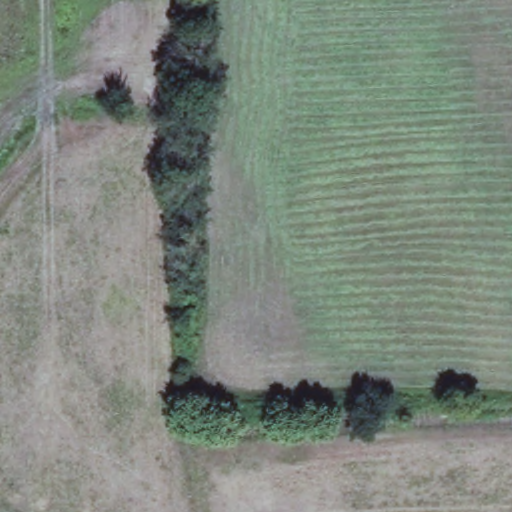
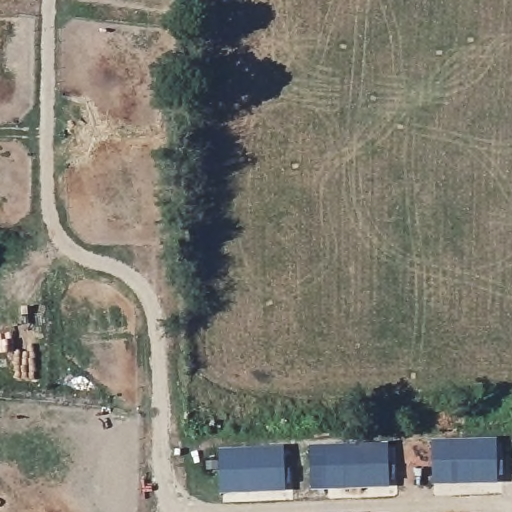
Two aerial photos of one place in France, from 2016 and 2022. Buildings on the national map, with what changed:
new [(433,441),(498,440),(498,485),(434,486),(433,441)]
new [(326,484),(314,483),(313,453),(327,453),(326,446),(389,444),(389,467),(396,467),(396,482),(389,482),(389,489),(326,490),(326,484)]
new [(222,493),(220,450),(285,448),(285,471),(290,471),(291,485),(285,486),(285,491),(222,493)]

